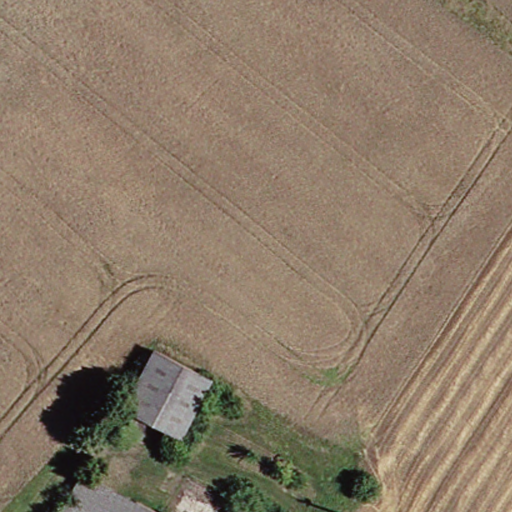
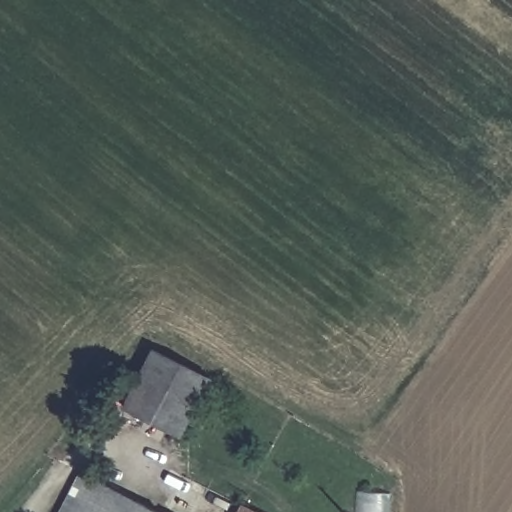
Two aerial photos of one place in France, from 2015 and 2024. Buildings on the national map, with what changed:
unchanged [(133,407),(161,352),(215,382),(188,436),(133,407)]
unchanged [(89,472),(143,499),(137,512),(68,512),(89,472)]
new [(390,497),(389,512),(355,512),(357,495),(390,497)]
unchanged [(143,499),(169,512),(137,512),(143,499)]
unchanged [(248,509),(253,512),(247,512),(248,509)]

